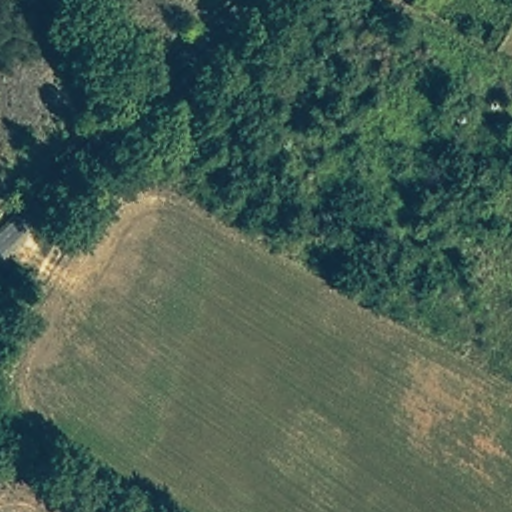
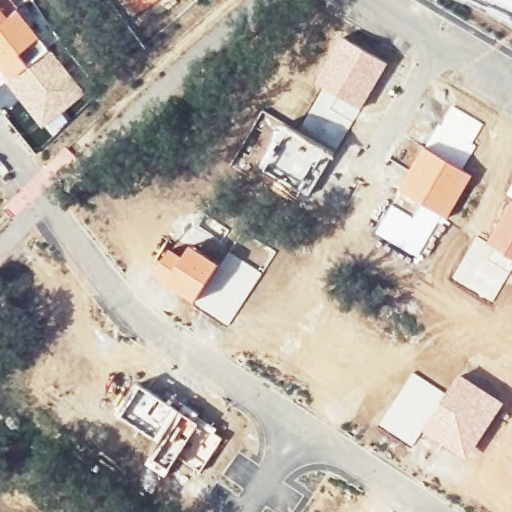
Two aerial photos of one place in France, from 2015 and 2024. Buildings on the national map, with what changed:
new [(17,6),(0,20),(0,0),(25,0),(17,6)]
new [(131,17),(120,0),(157,0),(131,17)]
new [(17,6),(47,45),(3,81),(0,78),(0,20),(17,6)]
new [(342,36),(388,63),(360,110),(321,89),(312,84),(342,36)]
new [(47,45),(85,90),(61,111),(69,121),(52,136),(43,125),(41,127),(3,81),(47,45)]
new [(321,89),(360,110),(334,155),(300,130),(297,129),(321,89)]
new [(451,105),(483,125),(472,143),(476,146),(462,170),(423,147),(451,105)]
new [(282,124),(298,133),(300,130),(334,155),(308,197),(257,167),(282,124)]
new [(423,147),(462,170),(473,176),(446,220),(441,217),(418,205),(396,192),(423,147)]
new [(512,199),(505,195),(512,182),(512,199)]
new [(512,258),(487,242),(512,201),(512,258)]
new [(391,204),(412,215),(418,205),(441,217),(417,257),(374,232),(391,204)]
new [(487,242),(512,258),(512,268),(491,302),(450,278),(476,236),(487,242)]
new [(169,248),(183,256),(190,245),(221,263),(195,303),(151,275),(169,248)]
new [(221,263),(230,251),(262,273),(228,326),(195,303),(221,263)]
new [(412,372),(446,393),(423,428),(411,445),(379,424),(412,372)]
new [(446,393),(460,373),(505,401),(467,458),(423,428),(446,393)]
new [(138,383),(183,411),(202,427),(165,478),(159,475),(162,470),(160,469),(162,467),(149,457),(158,442),(117,415),(138,383)]

